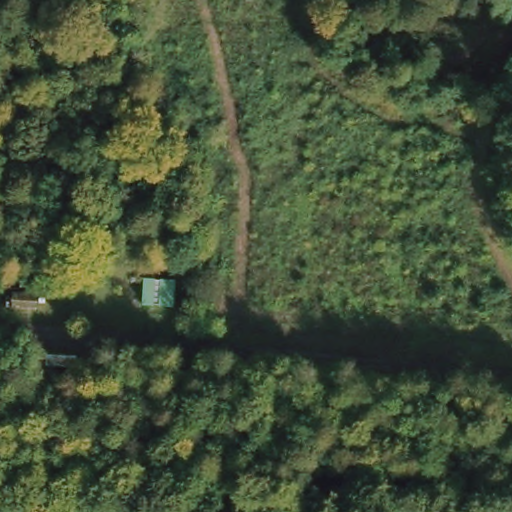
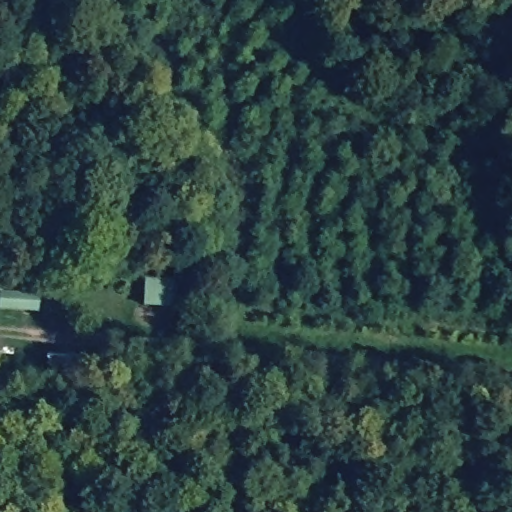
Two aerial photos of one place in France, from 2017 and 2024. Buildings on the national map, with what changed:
unchanged [(76,368),(46,369),(47,350),(79,351),(76,368)]

